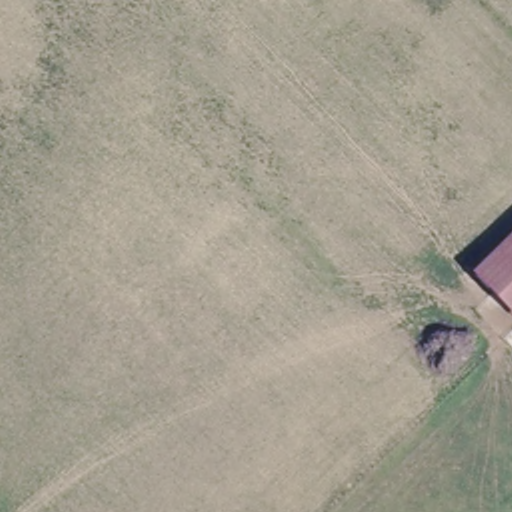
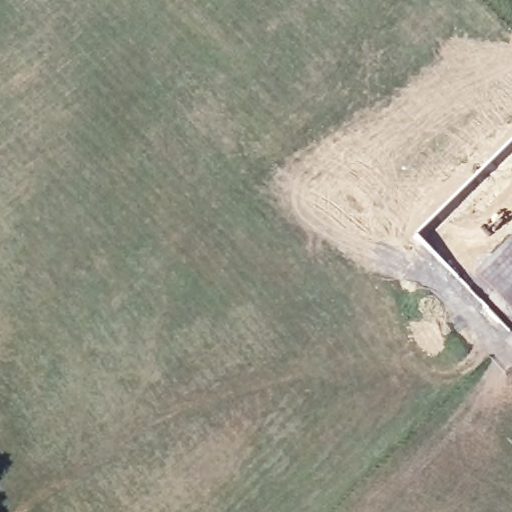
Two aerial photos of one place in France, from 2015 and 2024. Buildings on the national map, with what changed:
unchanged [(512,236),(512,272),(487,293),(471,276),(512,236)]
unchanged [(512,272),(512,319),(487,293),(512,272)]

